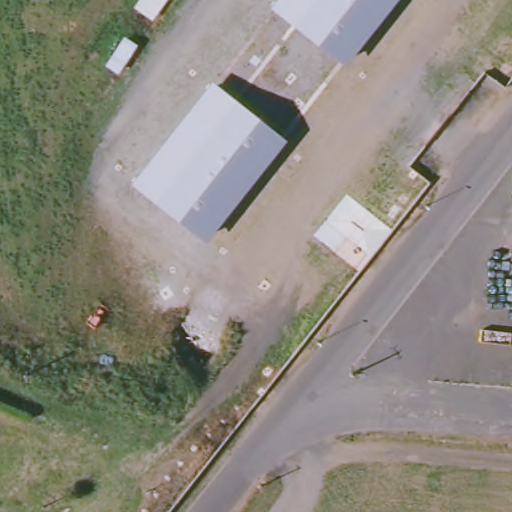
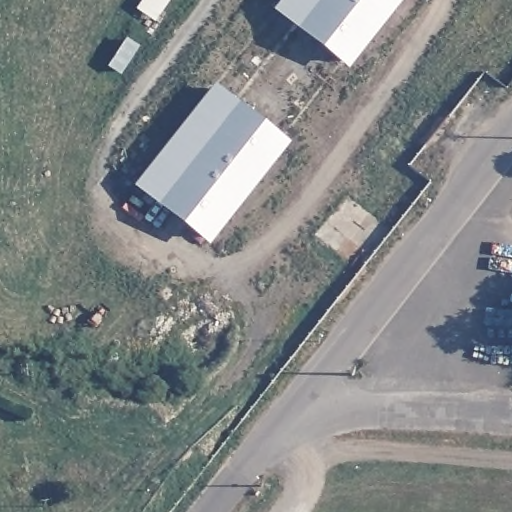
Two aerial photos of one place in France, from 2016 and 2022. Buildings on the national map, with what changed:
unchanged [(273,10),(281,0),(402,0),(348,67),(273,10)]
unchanged [(209,244),(134,186),(215,83),(290,143),(209,244)]

